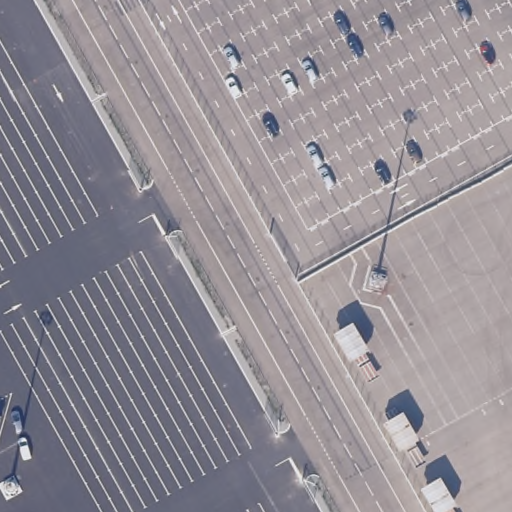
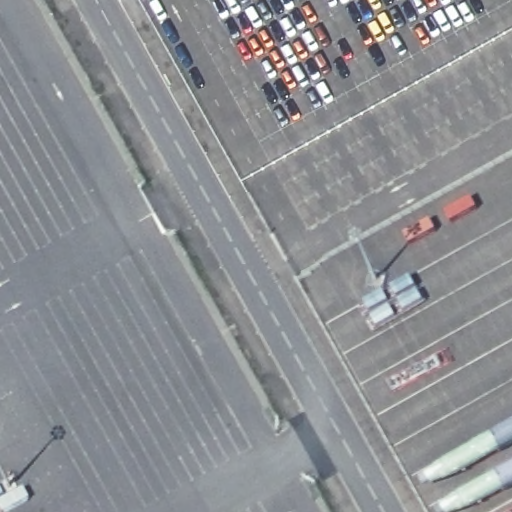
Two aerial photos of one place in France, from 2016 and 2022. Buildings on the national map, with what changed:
[]

